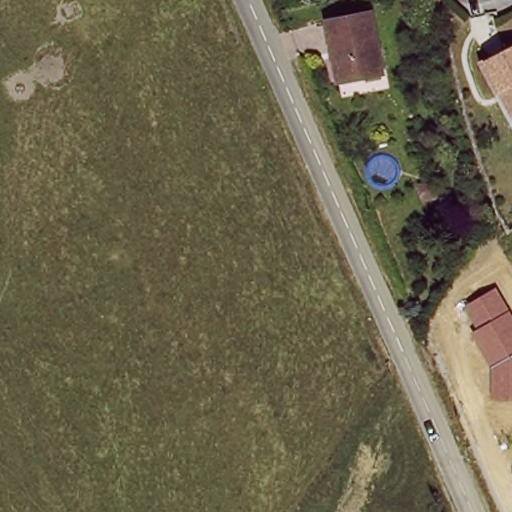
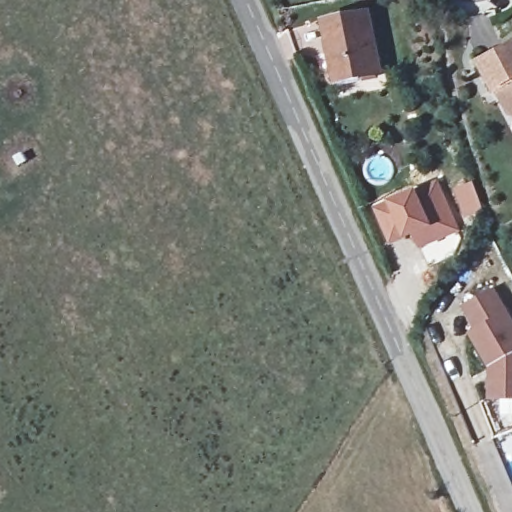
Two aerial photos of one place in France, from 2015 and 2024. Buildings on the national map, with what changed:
unchanged [(364,12),(378,77),(363,82),(360,69),(334,75),(322,22),(364,12)]
unchanged [(502,93),(498,95),(485,64),(512,53),(512,118),(502,93)]
new [(433,226),(417,185),(437,176),(459,232),(419,249),(412,235),(433,226)]
new [(472,178),(485,213),(465,220),(452,185),(472,178)]
new [(417,185),(433,226),(412,235),(389,244),(372,206),(417,185)]
unchanged [(496,289),(512,316),(512,399),(490,399),(490,368),(471,333),(477,330),(465,306),(496,289)]

